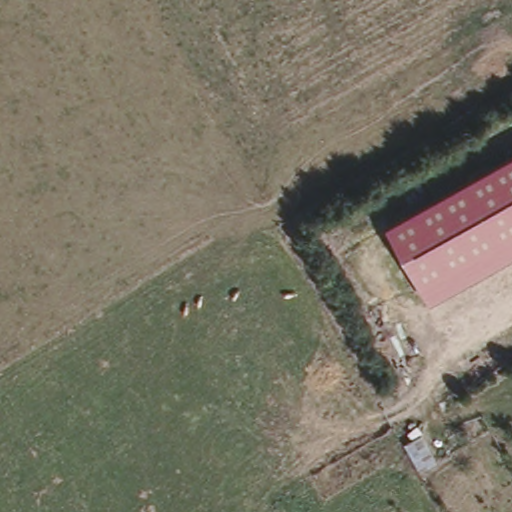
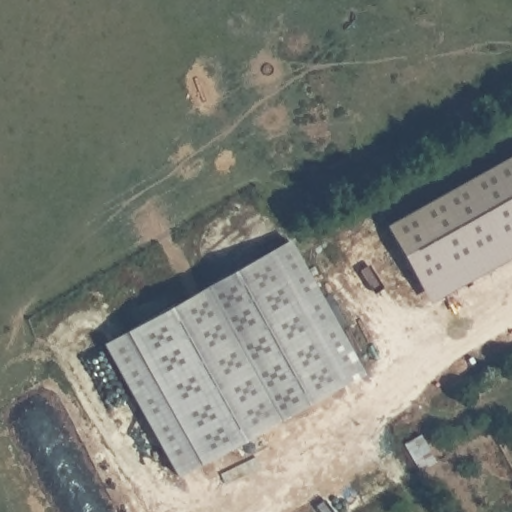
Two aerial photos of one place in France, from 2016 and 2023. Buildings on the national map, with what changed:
unchanged [(512,156),(512,258),(429,305),(384,226),(512,156)]
new [(179,477),(103,341),(288,236),(366,373),(179,477)]

